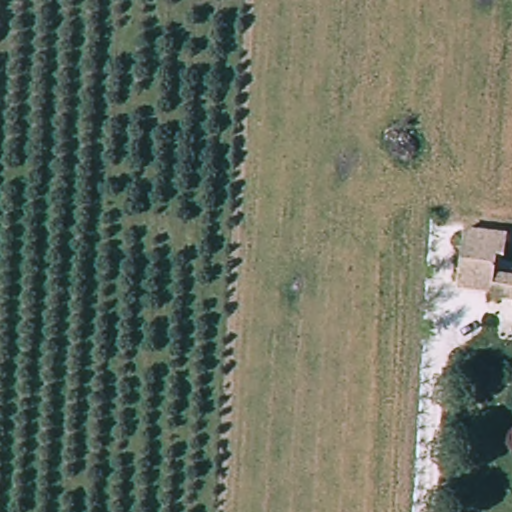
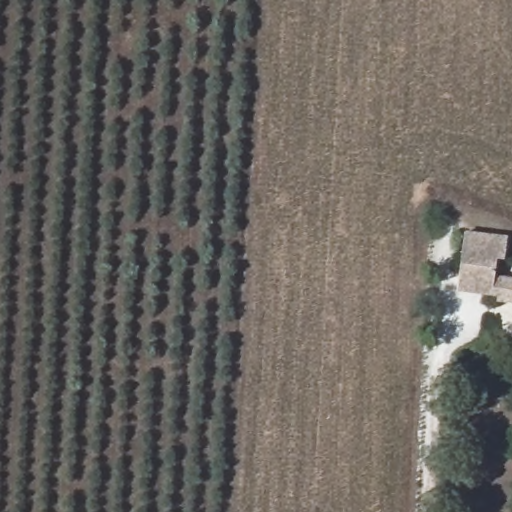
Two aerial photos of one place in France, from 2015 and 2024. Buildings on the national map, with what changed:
unchanged [(512,231),(512,247),(509,271),(512,271),(512,294),(505,293),(505,288),(465,283),(472,226),(512,231)]

